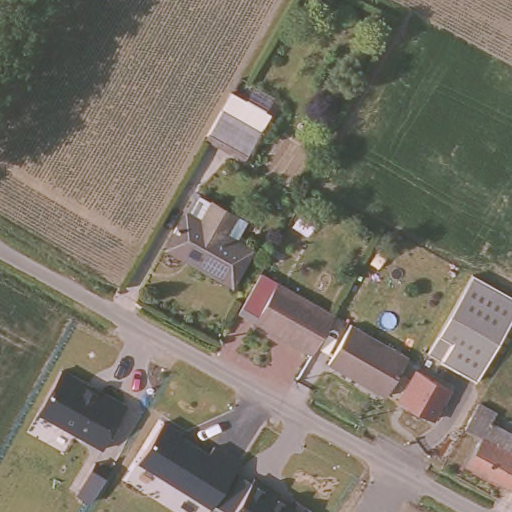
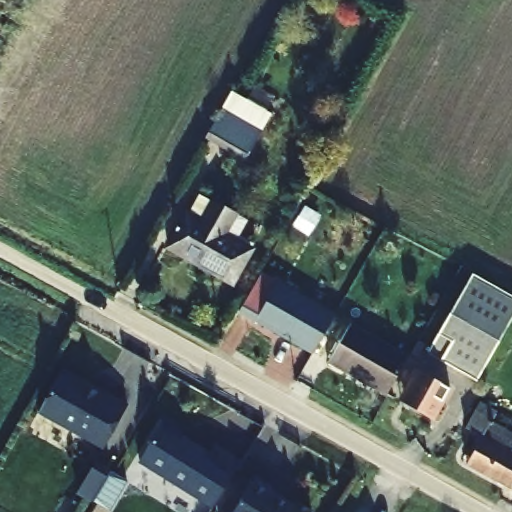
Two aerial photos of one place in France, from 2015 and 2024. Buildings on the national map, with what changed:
unchanged [(227,108),(233,94),(246,101),(254,89),(274,99),(267,109),(272,111),(266,131),(227,108)]
unchanged [(227,108),(266,131),(251,156),(213,134),(227,108)]
unchanged [(200,224),(210,206),(233,219),(224,237),(250,252),(233,284),(169,251),(188,217),(200,224)]
unchanged [(430,351),(472,274),(512,296),(512,314),(477,377),(430,351)]
unchanged [(348,316),(327,356),(251,314),(272,275),(348,316)]
unchanged [(368,387),(369,384),(363,380),(361,384),(327,364),(350,324),(409,356),(388,398),(368,387)]
unchanged [(454,384),(438,416),(412,403),(415,396),(409,393),(422,367),(454,384)]
unchanged [(103,450),(38,415),(62,368),(128,403),(103,450)]
unchanged [(483,437),(466,428),(480,400),(499,409),(493,420),(512,430),(512,488),(469,463),(483,437)]
unchanged [(290,504),(293,501),(310,512),(226,512),(215,504),(210,510),(138,464),(167,421),(184,432),(183,435),(211,453),(215,446),(242,463),(237,472),(253,482),(290,504)]

